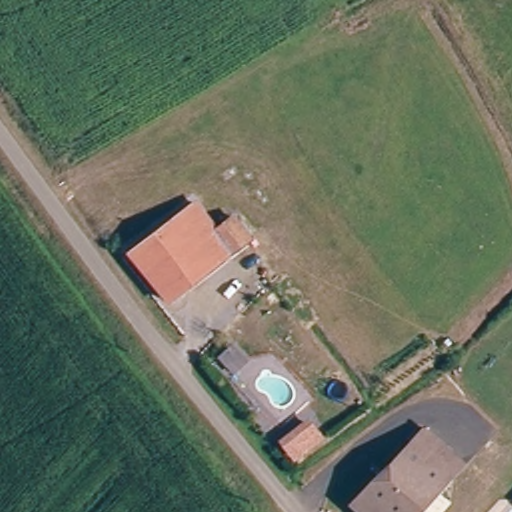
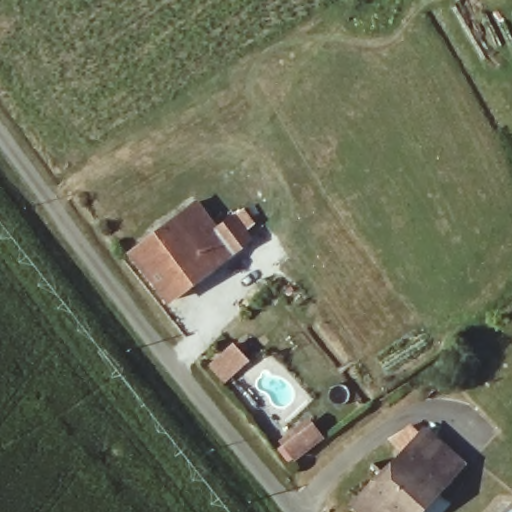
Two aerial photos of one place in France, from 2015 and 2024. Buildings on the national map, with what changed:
unchanged [(205,216),(225,236),(241,223),(256,243),(172,313),(155,290),(160,282),(147,268),(205,216)]
unchanged [(431,423),(469,463),(455,477),(416,438),(431,423)]
unchanged [(420,512),(361,512),(352,504),(416,438),(455,477),(420,512)]

